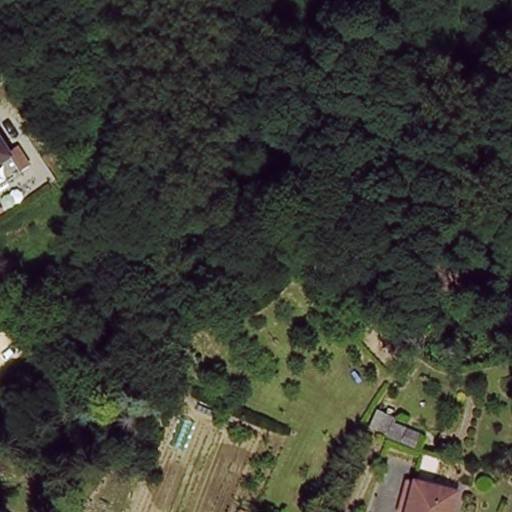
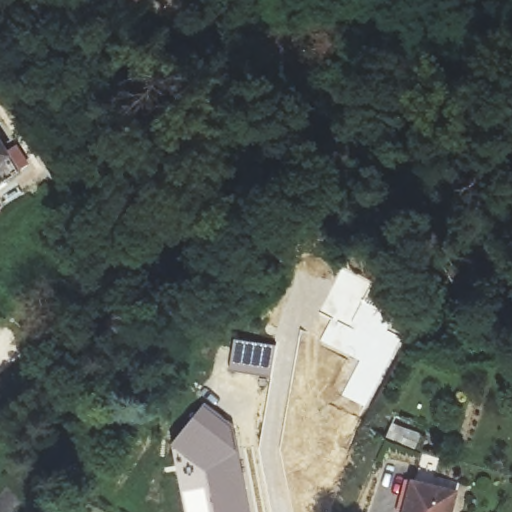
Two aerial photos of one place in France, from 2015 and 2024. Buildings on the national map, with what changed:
unchanged [(0,161),(0,128),(15,150),(0,161)]
new [(234,337),(277,344),(270,377),(228,369),(234,337)]
new [(205,401),(233,425),(242,460),(251,512),(212,512),(206,480),(203,471),(171,442),(205,401)]
unchanged [(418,479),(458,485),(453,512),(410,512),(418,479)]

